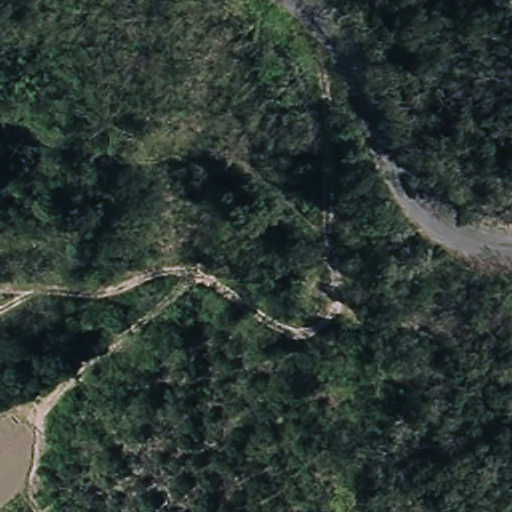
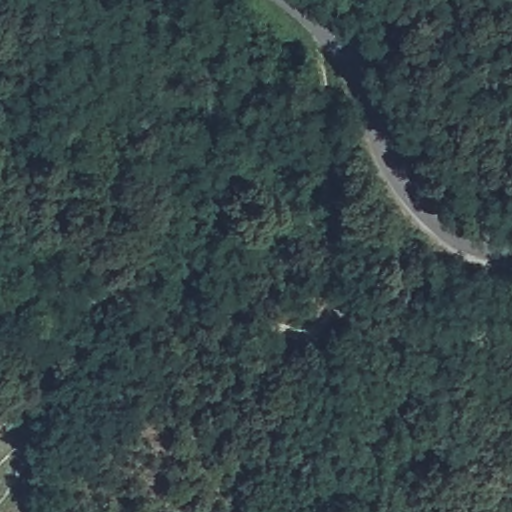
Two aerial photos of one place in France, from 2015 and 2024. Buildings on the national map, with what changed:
[]

